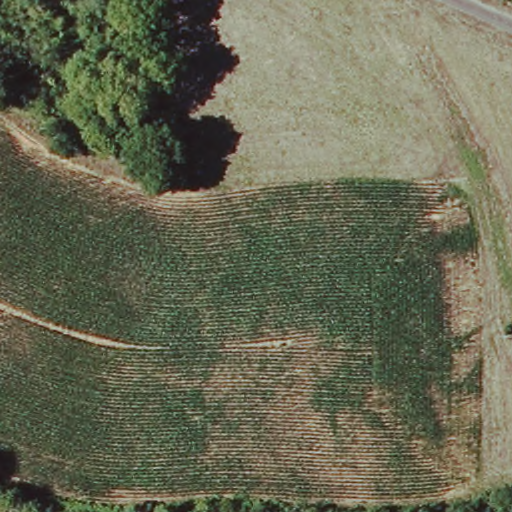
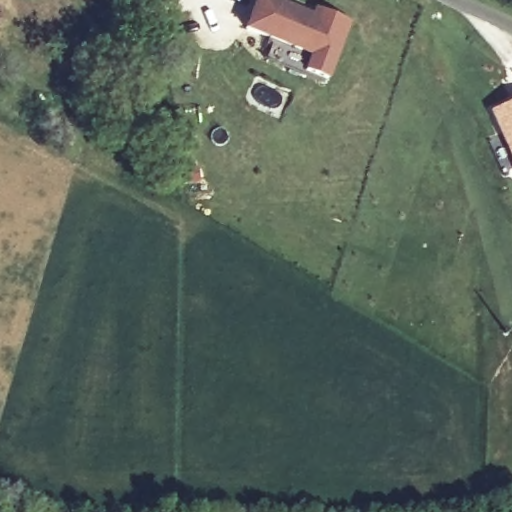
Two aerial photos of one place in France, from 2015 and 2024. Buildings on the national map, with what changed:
new [(311,14),(313,8),(350,22),(327,81),(302,71),(308,56),(241,30),(255,0),(274,0),(311,14)]
new [(487,112),(512,101),(512,169),(487,112)]

